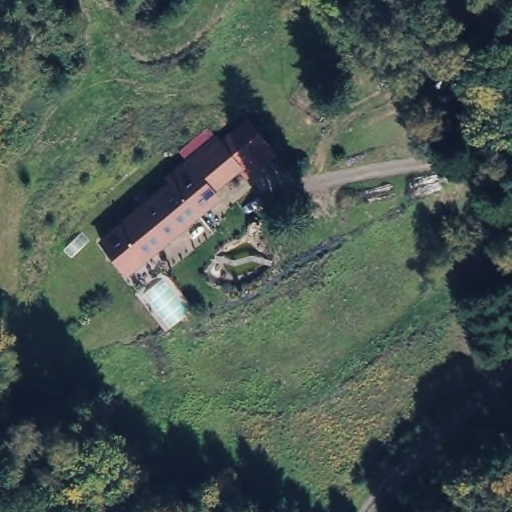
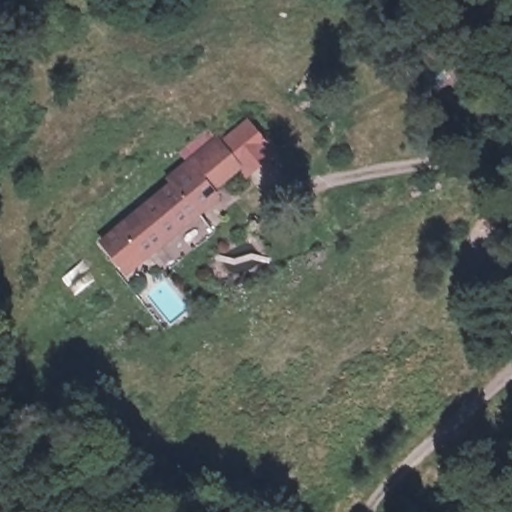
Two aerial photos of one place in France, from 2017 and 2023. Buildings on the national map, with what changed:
unchanged [(168,182),(163,176),(185,158),(179,150),(208,128),(241,167),(216,191),(220,197),(125,277),(99,240),(168,182)]

